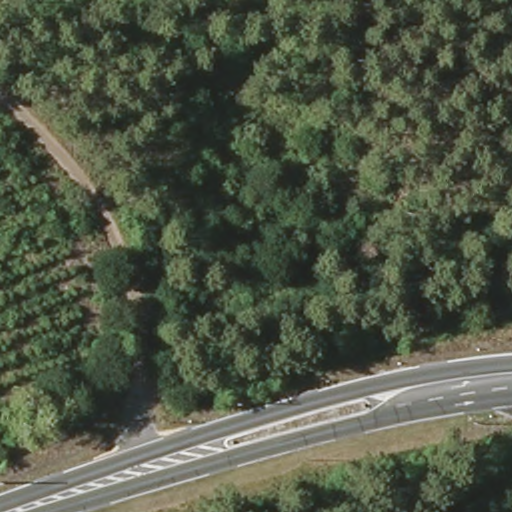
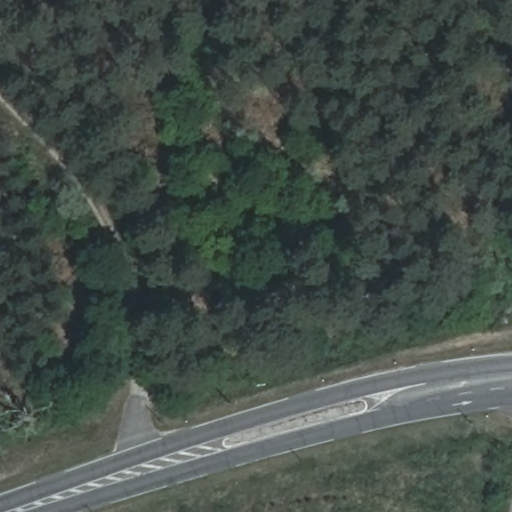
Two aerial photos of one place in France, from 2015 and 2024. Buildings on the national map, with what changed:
[]

